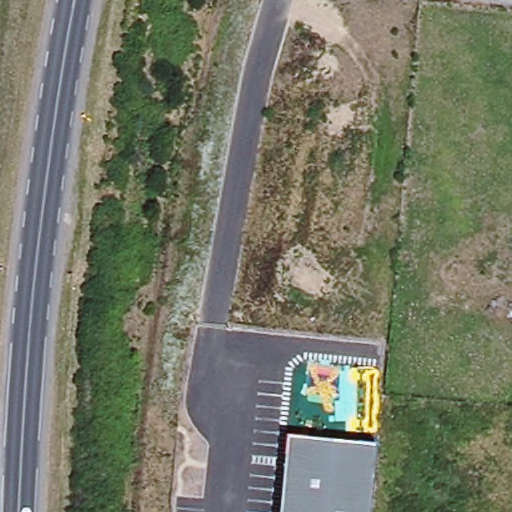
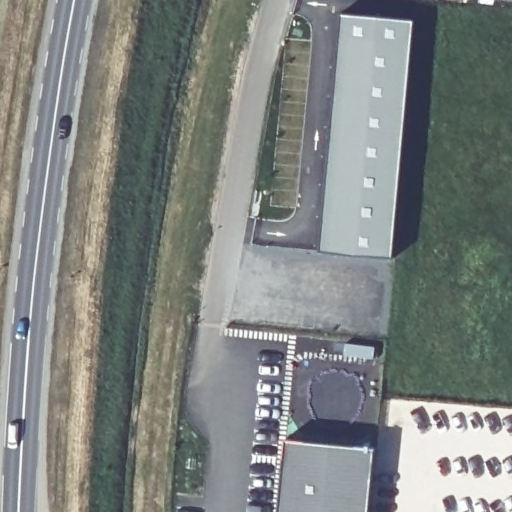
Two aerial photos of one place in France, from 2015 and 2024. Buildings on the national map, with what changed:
new [(343,11),(416,18),(395,256),(322,250),(343,11)]
unchanged [(377,448),(371,512),(280,512),(287,438),(377,448)]

